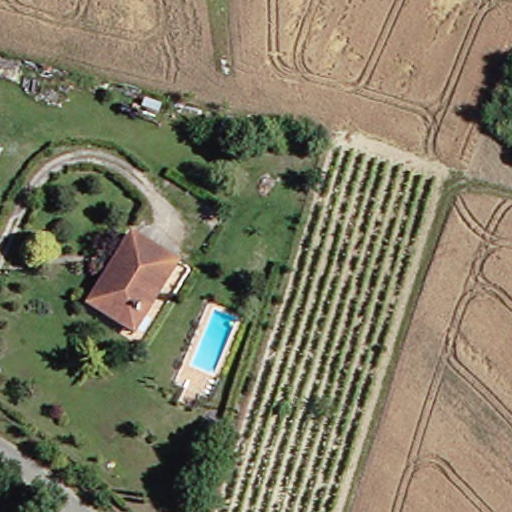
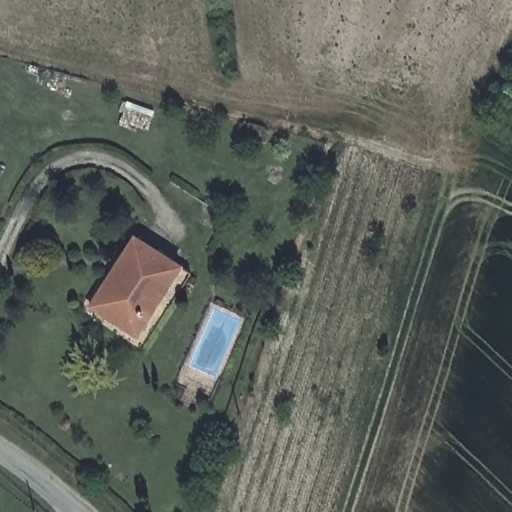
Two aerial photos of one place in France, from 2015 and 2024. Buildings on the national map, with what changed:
unchanged [(134,329),(95,303),(142,233),(201,272),(177,306),(166,298),(142,334),(134,329)]

